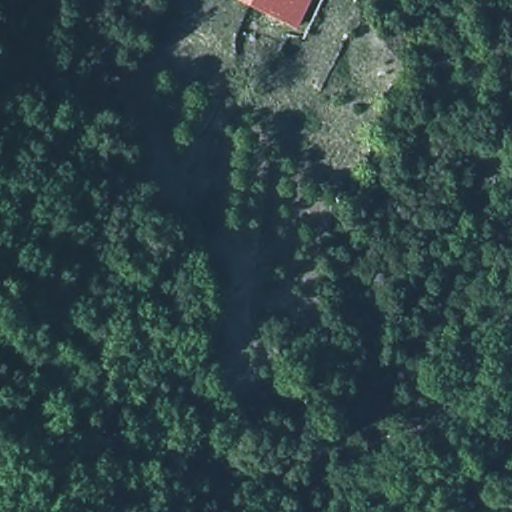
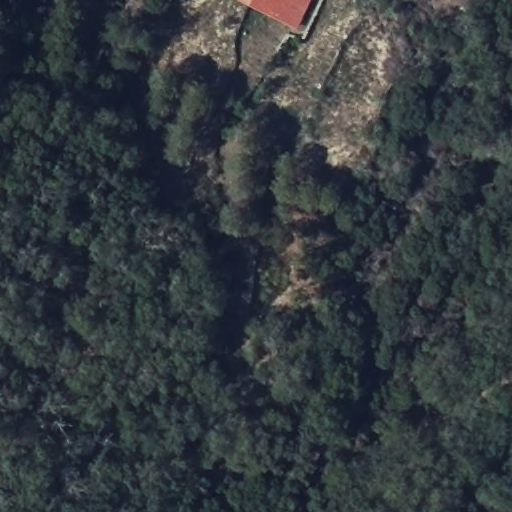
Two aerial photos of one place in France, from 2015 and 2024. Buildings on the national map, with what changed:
unchanged [(300,29),(243,0),(314,0),(300,29)]

